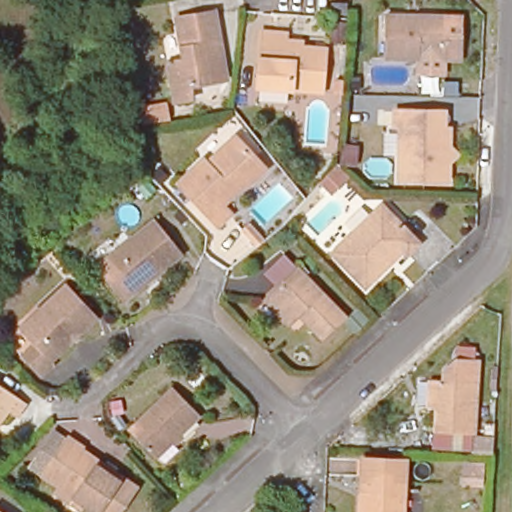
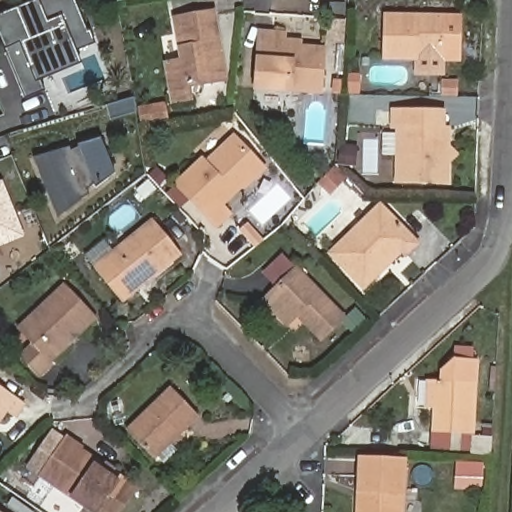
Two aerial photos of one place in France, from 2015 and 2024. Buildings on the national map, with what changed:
new [(71,49),(76,61),(40,76),(45,89),(25,98),(6,53),(0,38),(0,14),(36,0),(76,0),(92,40),(71,49)]
unchanged [(331,14),(345,14),(345,24),(330,24),(331,14)]
unchanged [(219,18),(230,84),(192,90),(195,104),(178,106),(172,69),(188,66),(181,25),(219,18)]
unchanged [(373,63),(374,20),(453,23),(452,64),(373,63)]
unchanged [(256,98),(260,41),(285,43),(284,56),(324,59),(321,104),(256,98)]
unchanged [(170,108),(173,124),(146,129),(144,113),(170,108)]
unchanged [(449,168),(449,188),(397,186),(398,131),(392,131),(393,115),(445,116),(445,133),(450,133),(449,152),(440,160),(449,168)]
new [(70,148),(71,153),(80,150),(78,145),(101,138),(116,174),(96,189),(93,184),(86,189),(90,194),(59,219),(34,158),(70,148)]
unchanged [(239,141),(260,164),(255,169),(255,179),(260,184),(251,194),(246,194),(228,210),(236,219),(223,232),(181,189),(209,163),(212,166),(239,141)]
unchanged [(365,147),(365,164),(350,164),(350,146),(365,147)]
unchanged [(345,165),(356,176),(341,194),(329,184),(345,165)]
new [(21,235),(0,243),(0,184),(1,184),(21,235)]
unchanged [(331,254),(380,205),(418,244),(406,255),(402,251),(364,288),(331,254)]
unchanged [(187,254),(140,292),(126,302),(99,267),(112,257),(159,219),(187,254)]
unchanged [(296,274),(345,323),(322,344),(305,327),(309,324),(302,316),(288,330),(265,305),(296,274)]
unchanged [(46,371),(48,374),(34,387),(15,366),(27,355),(16,344),(38,323),(34,319),(61,294),(92,327),(46,371)]
unchanged [(439,387),(439,376),(453,366),(476,368),(475,389),(472,439),(434,438),(435,414),(427,413),(429,387),(439,387)]
unchanged [(16,422),(7,416),(0,425),(0,391),(25,408),(16,422)]
unchanged [(194,421),(149,464),(123,436),(167,393),(194,421)]
unchanged [(133,512),(84,512),(44,484),(31,476),(57,439),(70,448),(143,499),(133,512)]
unchanged [(402,512),(357,512),(360,459),(404,461),(402,512)]
unchanged [(484,464),(483,487),(463,486),(464,464),(484,464)]

